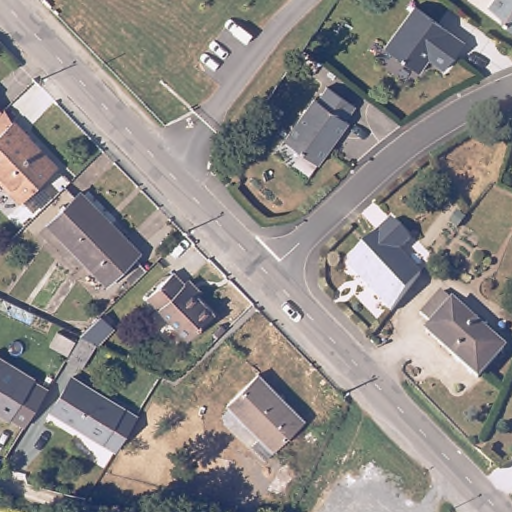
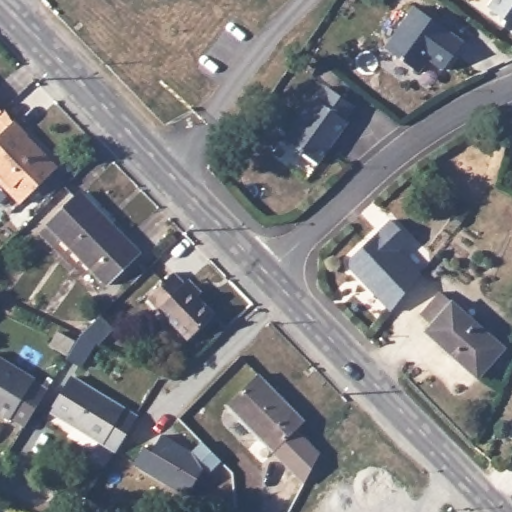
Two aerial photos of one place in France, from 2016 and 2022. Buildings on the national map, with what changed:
unchanged [(496,20),(484,10),(492,0),(512,0),(512,37),(497,26),(496,20)]
unchanged [(439,29),(461,45),(457,50),(440,73),(426,62),(416,75),(382,50),(412,9),(439,29)]
unchanged [(354,106),(344,120),(347,123),(317,164),(283,139),(314,98),(317,100),(327,86),(354,106)]
unchanged [(0,181),(0,110),(3,113),(6,110),(14,124),(58,169),(22,204),(0,181)]
unchanged [(81,192),(138,251),(105,284),(48,224),(81,192)]
unchanged [(344,269),(344,260),(386,221),(405,240),(394,252),(416,274),(386,312),(344,269)]
unchanged [(177,274),(217,316),(190,342),(151,299),(177,274)]
unchanged [(509,354),(483,383),(433,335),(439,329),(427,319),(446,297),(458,308),(509,354)]
unchanged [(98,347),(81,369),(66,359),(68,356),(50,347),(58,332),(75,342),(80,334),(102,315),(115,329),(98,347)]
unchanged [(31,377),(30,379),(45,388),(40,397),(23,426),(7,417),(6,419),(0,415),(0,358),(31,377)]
unchanged [(257,448),(264,442),(227,406),(258,374),(305,421),(274,452),(268,459),(257,448)]
unchanged [(70,375),(134,414),(113,449),(50,409),(70,375)]
new [(143,446),(151,451),(161,433),(191,451),(201,440),(220,459),(208,472),(202,468),(186,494),(133,463),(143,446)]

